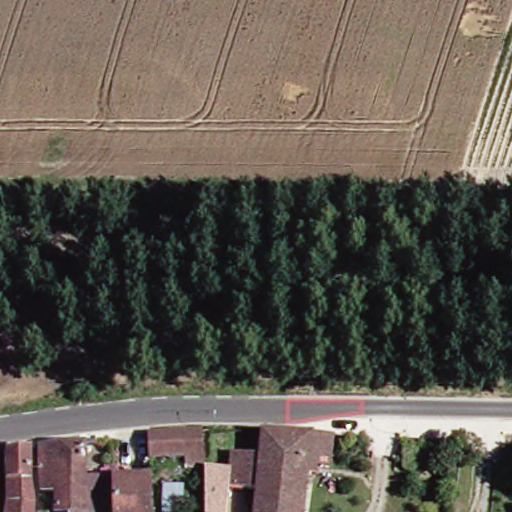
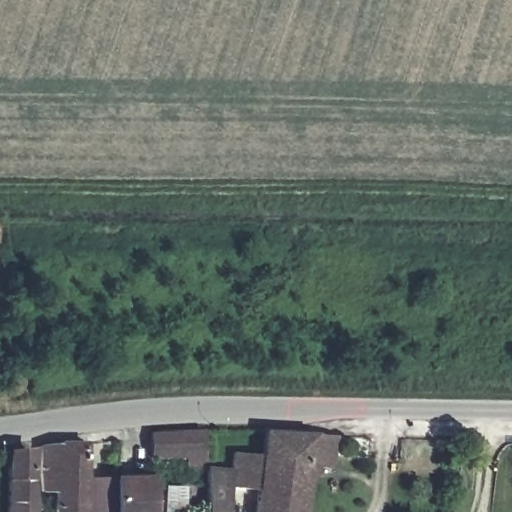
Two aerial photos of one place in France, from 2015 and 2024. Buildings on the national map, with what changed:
unchanged [(211,435),(210,464),(151,461),(152,433),(211,435)]
unchanged [(263,463),(264,435),(308,437),(332,437),(332,464),(309,463),(309,479),(264,478),(263,463)]
unchanged [(87,446),(88,481),(85,512),(55,512),(55,496),(41,497),(42,447),(87,446)]
unchanged [(7,454),(37,454),(35,512),(5,512),(7,454)]
unchanged [(263,463),(264,478),(263,494),(229,495),(229,463),(263,463)]
unchanged [(311,512),(263,512),(263,494),(264,478),(309,479),(311,512)]
unchanged [(88,481),(113,482),(149,483),(148,499),(148,512),(85,512),(88,481)]

